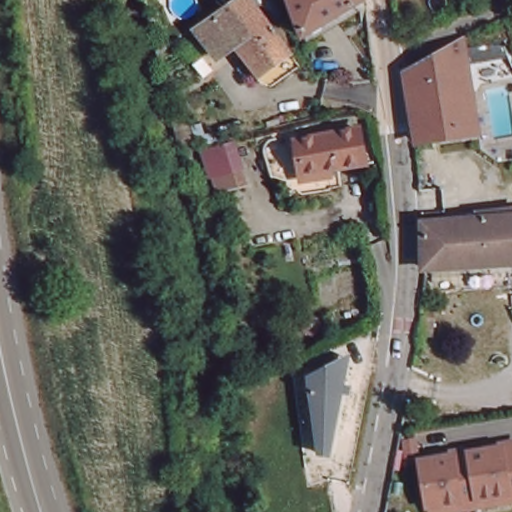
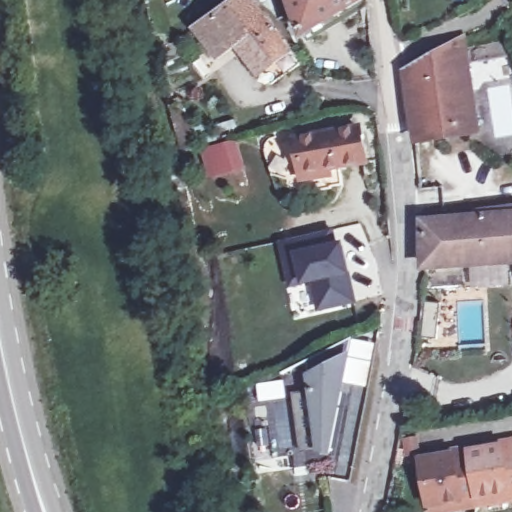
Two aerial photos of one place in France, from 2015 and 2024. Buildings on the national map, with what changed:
unchanged [(273,86),(256,74),(233,41),(215,55),(195,30),(237,0),(252,0),(289,49),(301,65),(273,86)]
unchanged [(303,35),(290,0),(362,0),(353,5),(356,12),(340,21),(336,15),(303,35)]
unchanged [(409,76),(466,44),(480,134),(421,143),(409,76)]
unchanged [(344,185),(333,187),(331,175),(305,180),(298,139),(359,128),(365,163),(341,167),(344,185)]
unchanged [(247,184),(226,191),(212,145),(234,138),(247,184)]
unchanged [(431,267),(430,267),(429,223),(512,216),(512,262),(431,267)]
new [(282,242),(332,230),(336,246),(342,245),(345,259),(340,260),(342,267),(347,266),(355,301),(320,310),(314,280),(292,285),(282,242)]
unchanged [(316,456),(315,443),(306,442),(296,371),(305,368),(307,377),(352,356),(345,385),(351,387),(349,395),(344,394),(331,458),(316,456)]
unchanged [(427,505),(420,460),(453,455),(469,452),(502,447),(512,445),(512,499),(510,500),(478,505),(461,508),(434,512),(430,512),(430,505),(427,505)]

